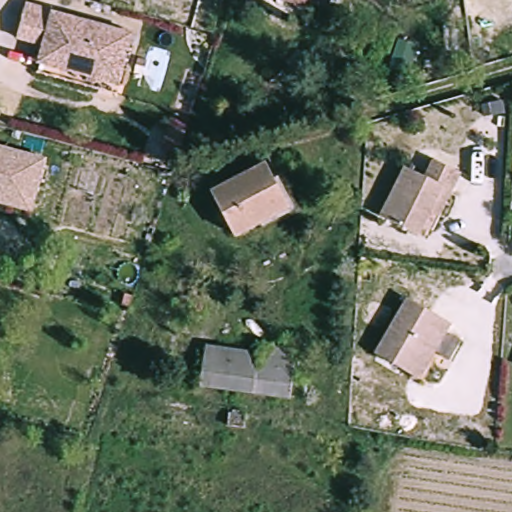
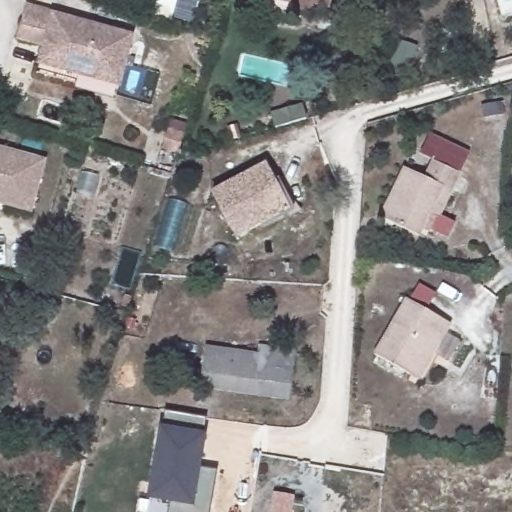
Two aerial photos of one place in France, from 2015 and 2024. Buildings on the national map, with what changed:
unchanged [(156,0),(179,6),(174,25),(150,19),(154,0),(156,0)]
unchanged [(309,9),(306,10),(304,11),(301,11),(299,10),(296,8),(295,6),(294,3),(294,1),(289,0),(331,0),(329,8),(326,8),(311,4),(310,7),(309,9)]
unchanged [(81,76),(59,70),(63,53),(36,46),(19,41),(24,24),(28,7),(56,14),(56,16),(134,37),(122,82),(121,86),(81,76)]
unchanged [(432,210),(420,235),(389,221),(390,196),(406,167),(426,177),(435,159),(420,153),(432,132),(470,153),(461,172),(453,190),(442,214),(432,210)]
unchanged [(0,205),(0,149),(50,163),(39,205),(36,215),(0,205)]
unchanged [(277,219),(240,238),(218,192),(271,167),(288,203),(292,212),(277,219)]
unchanged [(415,379),(387,363),(376,357),(388,338),(409,303),(453,327),(445,342),(421,382),(415,379)]
unchanged [(258,357),(259,346),(298,352),(290,400),(200,386),(207,348),(258,357)]
new [(201,435),(159,429),(162,411),(203,417),(201,435)]
demolished [(230,418),(242,420),(241,430),(228,429),(230,418)]
new [(215,469),(208,512),(166,512),(170,487),(150,484),(159,429),(201,435),(196,466),(215,469)]
new [(170,487),(168,500),(148,497),(150,484),(170,487)]
new [(275,493),(295,496),(292,512),(271,512),(275,493)]

